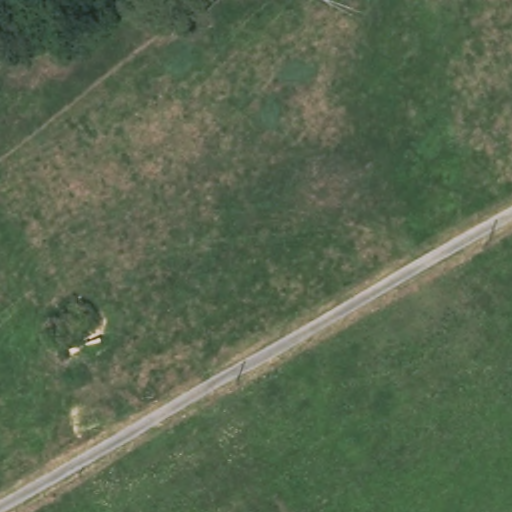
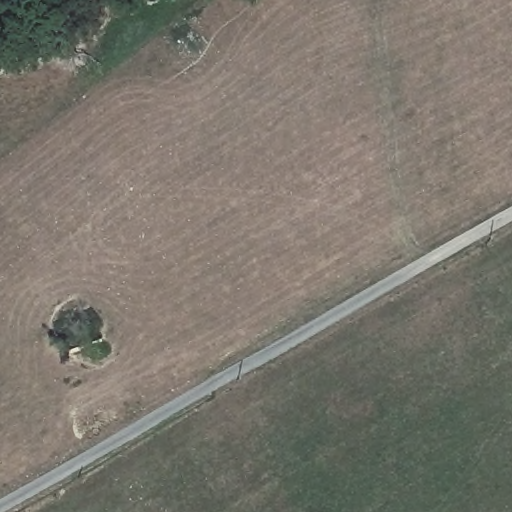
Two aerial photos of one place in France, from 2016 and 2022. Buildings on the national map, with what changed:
unchanged [(93,304),(108,342),(71,352),(58,316),(93,304)]

